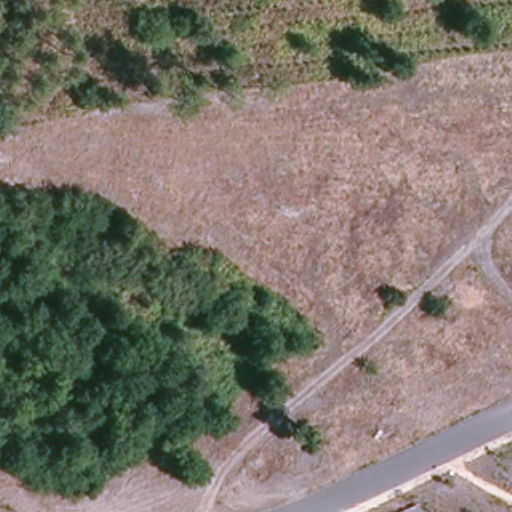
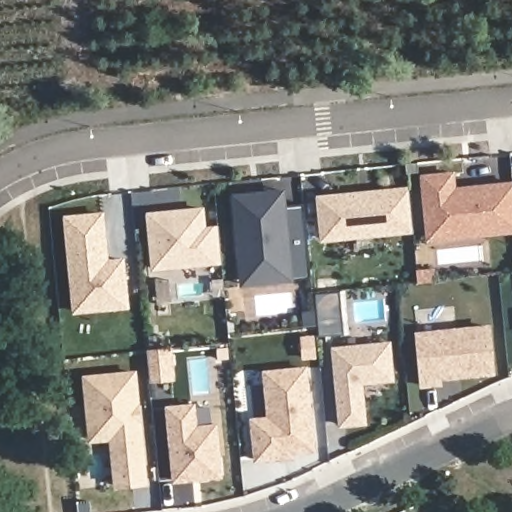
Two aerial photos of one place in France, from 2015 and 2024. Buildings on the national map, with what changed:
new [(429,223),(424,178),(455,175),(456,192),(512,186),(512,233),(480,236),(430,241),(429,223)]
new [(240,263),(234,195),(273,192),(282,191),(284,206),(304,204),(311,278),(257,283),(243,284),(240,263)]
new [(372,194),(410,191),(414,231),(324,240),(321,199),(360,195),(372,194)]
new [(222,261),(154,267),(148,214),(202,209),(204,229),(219,227),(222,261)]
new [(73,294),(66,217),(102,214),(106,261),(122,260),(127,306),(95,309),(75,311),(73,294)]
new [(340,334),(320,336),(316,293),(336,291),(340,334)]
new [(320,325),(307,326),(306,315),(319,314),(320,325)]
new [(492,329),(496,375),(443,380),(443,386),(427,388),(422,336),(492,329)]
new [(392,346),(396,381),(364,384),(368,424),(345,427),(338,351),(392,346)]
new [(283,456),(256,459),(251,420),(269,418),(264,372),(304,368),(312,450),(282,452),(289,452),(289,456),(283,456)]
new [(116,486),(110,423),(89,425),(85,377),(134,372),(138,405),(139,420),(145,483),(116,486)]
new [(220,475),(175,480),(168,408),(193,405),(195,428),(215,426),(220,475)]
new [(112,438),(91,440),(89,425),(110,423),(112,438)]

